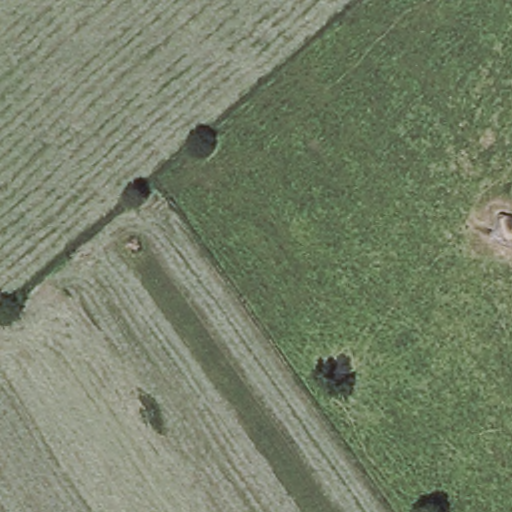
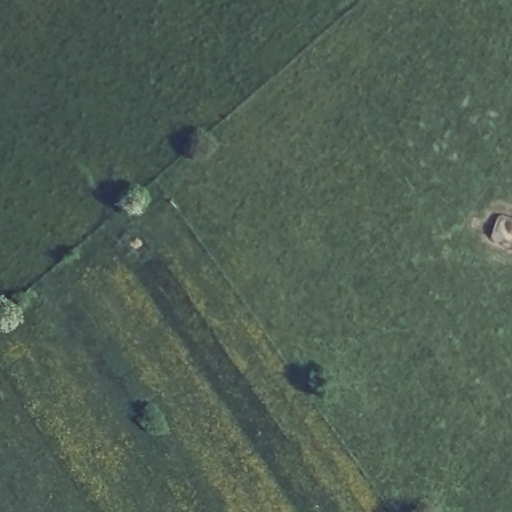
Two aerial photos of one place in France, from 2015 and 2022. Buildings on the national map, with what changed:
unchanged [(512,217),(512,247),(490,241),(501,213),(512,217)]

